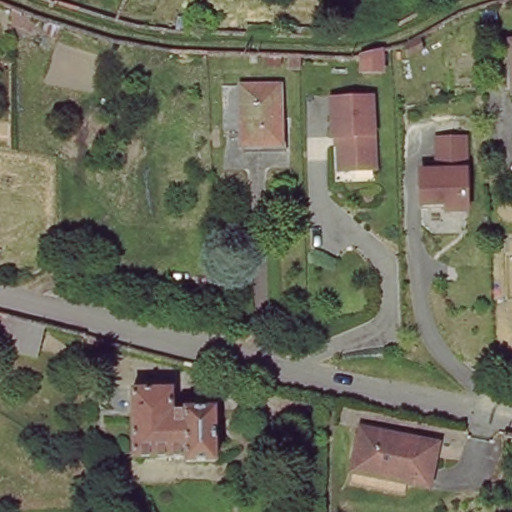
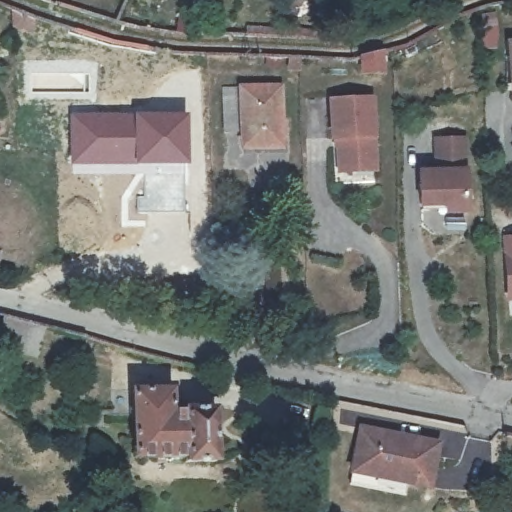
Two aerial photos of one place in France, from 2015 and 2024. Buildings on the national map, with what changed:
unchanged [(429,36),(428,61),(410,61),(410,42),(429,36)]
unchanged [(367,73),(366,52),(383,50),(400,45),(400,73),(367,73)]
unchanged [(243,146),(242,83),(278,85),(277,146),(243,146)]
unchanged [(335,102),(373,102),(375,173),(340,173),(340,140),(335,140),(335,102)]
new [(189,112),(188,165),(70,166),(70,111),(189,112)]
unchanged [(463,212),(444,212),(445,204),(420,203),(420,171),(438,172),(439,139),(466,140),(463,212)]
unchanged [(512,240),(512,300),(507,300),(504,240),(512,240)]
unchanged [(45,329),(35,353),(35,356),(0,344),(0,336),(5,318),(45,329)]
unchanged [(212,401),(215,455),(187,456),(187,450),(142,451),(140,433),(136,433),(135,412),(118,413),(118,387),(170,384),(172,407),(188,407),(187,403),(212,401)]
unchanged [(440,442),(430,486),(407,481),(352,468),(364,425),(440,442)]

